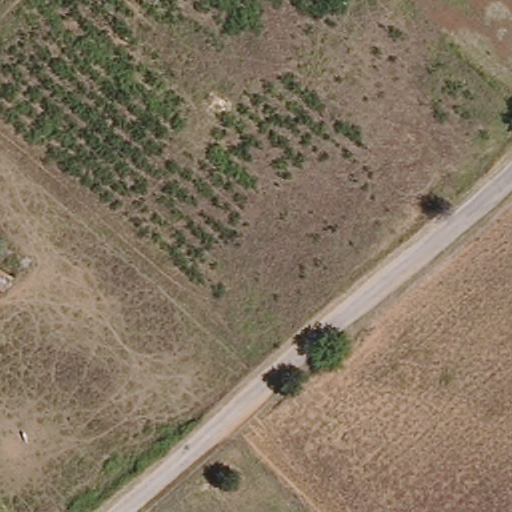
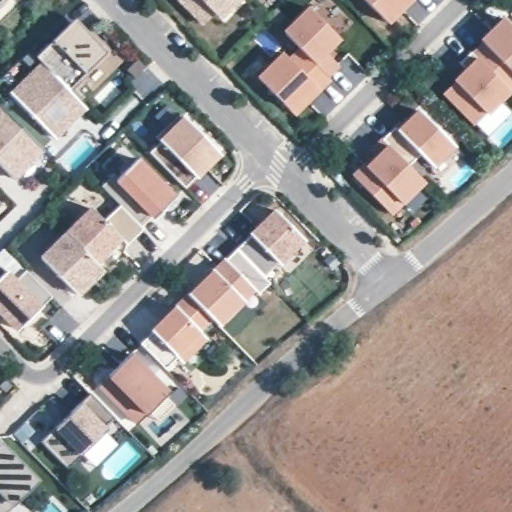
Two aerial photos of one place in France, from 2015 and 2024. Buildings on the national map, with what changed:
new [(219,21),(214,15),(203,27),(174,1),(174,0),(240,0),(219,21)]
new [(389,24),(364,0),(413,0),(389,24)]
new [(342,39),(329,53),(340,70),(322,90),(296,117),(256,78),(282,52),(289,57),(298,47),(280,32),(306,7),(342,39)]
new [(511,92),(487,115),(475,126),(442,95),(455,82),(452,79),(476,56),(472,52),(483,42),(480,38),(502,17),(512,26),(512,91),(511,92)]
new [(106,54),(83,74),(66,91),(85,110),(53,145),(5,97),(38,65),(32,57),(48,42),(72,19),(106,54)]
new [(46,152),(16,181),(0,164),(0,107),(46,152)]
new [(458,147),(434,170),(423,157),(410,167),(426,184),(406,205),(394,215),(354,172),(366,165),(375,154),(369,149),(394,125),(398,129),(418,109),(458,147)]
new [(221,155),(192,182),(184,192),(144,152),(156,141),(180,117),(221,155)]
new [(173,199),(147,222),(144,217),(117,244),(96,266),(101,273),(76,301),(33,259),(85,207),(99,221),(117,206),(98,187),(110,176),(113,179),(134,159),(173,199)]
new [(305,242),(279,268),(274,263),(263,278),(236,253),(250,239),(244,235),(269,210),(305,242)]
new [(263,278),(271,283),(259,295),(256,291),(245,302),(221,327),(214,320),(202,332),(209,339),(183,364),(178,359),(166,371),(139,343),(151,328),(175,306),(213,269),(225,258),(233,250),(236,253),(263,278)]
new [(52,297),(42,304),(14,332),(0,318),(0,277),(7,270),(16,279),(26,269),(52,297)]
new [(165,392),(141,415),(129,427),(94,390),(103,380),(128,355),(165,392)]
new [(112,418),(102,427),(75,457),(62,467),(37,442),(48,430),(76,403),(85,395),(112,418)]
new [(37,483),(12,506),(5,497),(0,501),(0,446),(37,483)]

